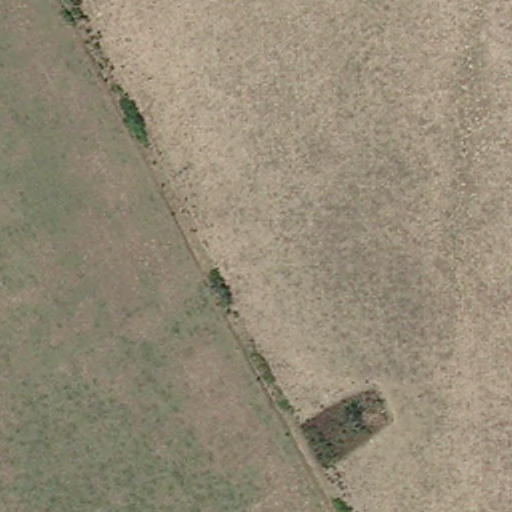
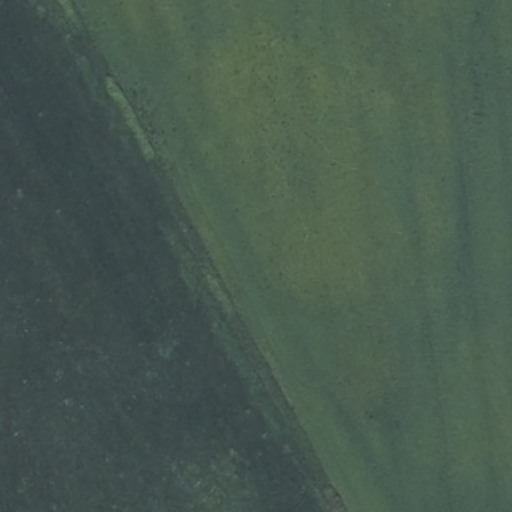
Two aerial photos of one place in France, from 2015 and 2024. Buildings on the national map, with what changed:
[]

